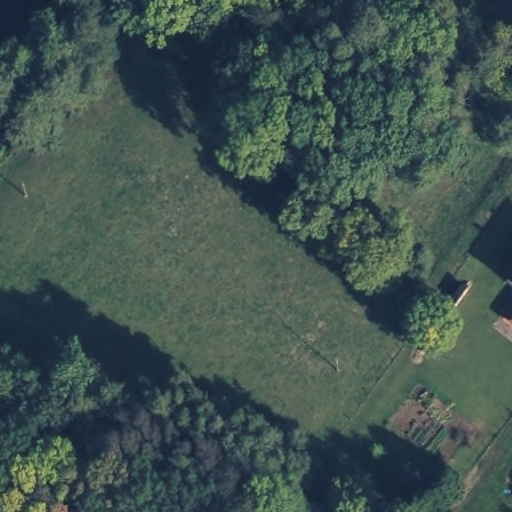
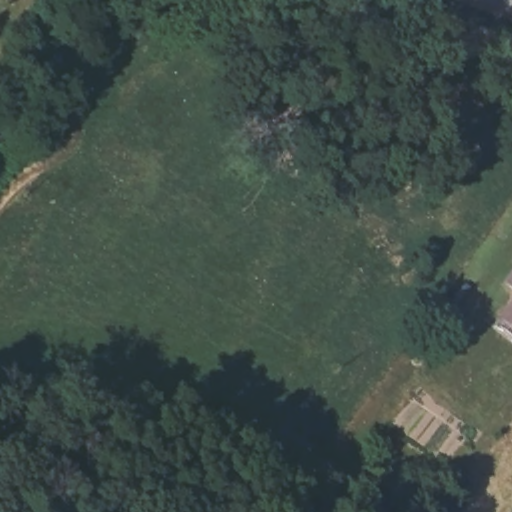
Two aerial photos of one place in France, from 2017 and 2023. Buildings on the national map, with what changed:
unchanged [(512,298),(512,330),(499,317),(512,298)]

